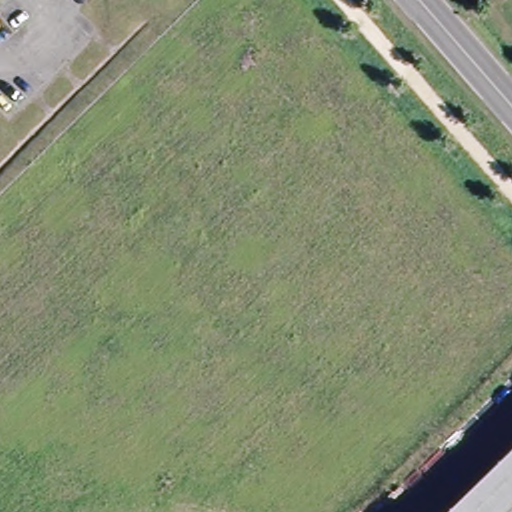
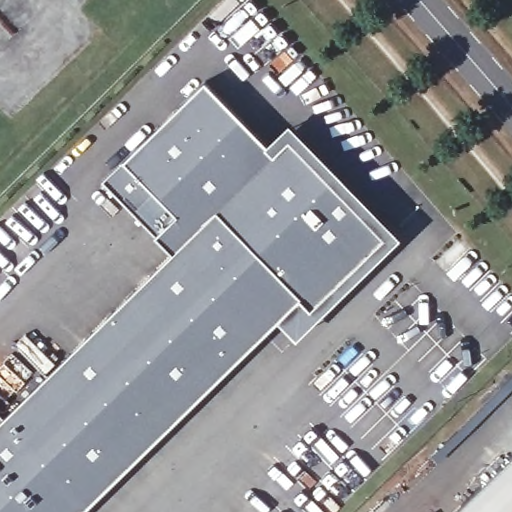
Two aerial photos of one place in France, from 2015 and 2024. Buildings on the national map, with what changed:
new [(278,321),(82,512),(0,512),(0,423),(172,254),(155,235),(103,181),(125,162),(205,82),(267,145),(289,124),(401,238),(296,341),(278,321)]
unchanged [(512,512),(453,512),(512,454),(512,512)]

